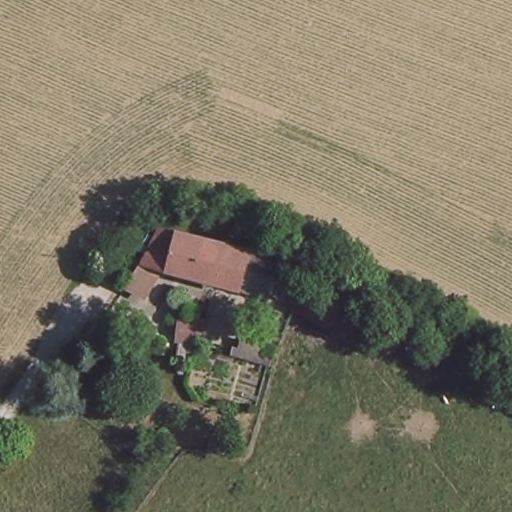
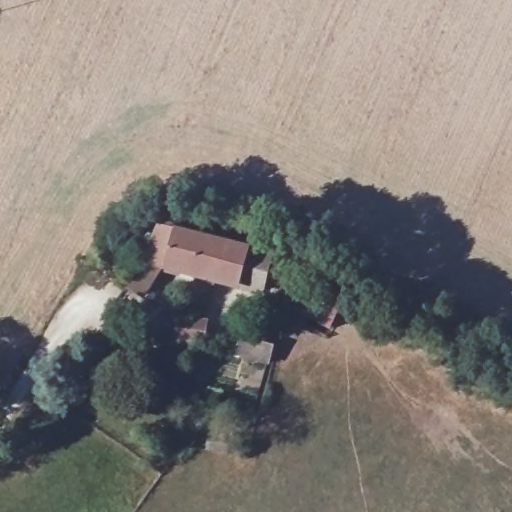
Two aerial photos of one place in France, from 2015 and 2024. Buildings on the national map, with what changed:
unchanged [(229,242),(274,257),(258,294),(169,266),(146,295),(126,283),(147,258),(164,227),(229,242)]
unchanged [(290,307),(301,277),(346,296),(332,327),(290,307)]

